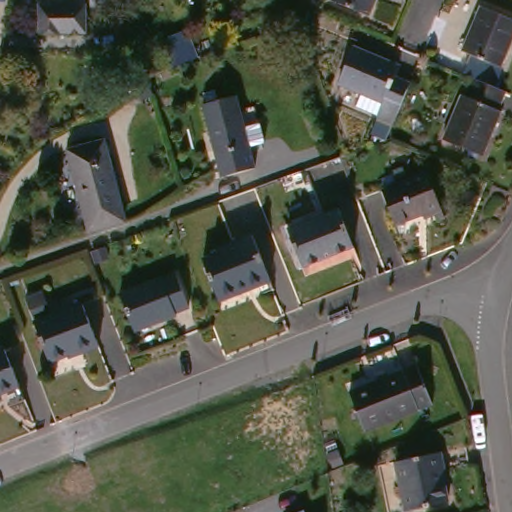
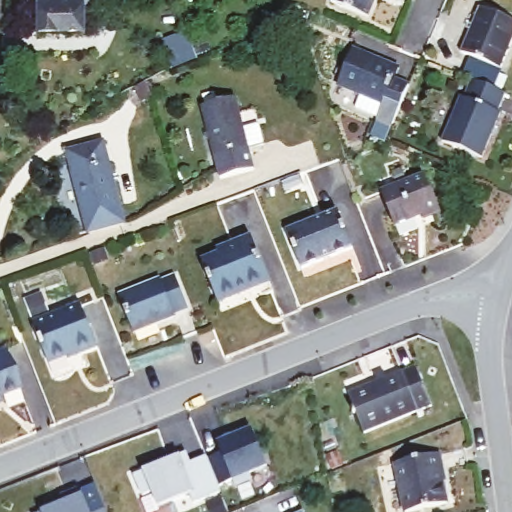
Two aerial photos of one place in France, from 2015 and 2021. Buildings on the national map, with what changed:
unchanged [(111,11),(83,11),(84,36),(39,37),(38,9),(41,9),(41,0),(111,0),(111,11)]
unchanged [(366,19),(329,3),(330,0),(374,0),(366,19)]
unchanged [(512,1),(511,0),(512,0),(512,1)]
unchanged [(458,54),(477,8),(512,23),(512,40),(499,70),(458,54)]
unchanged [(359,90),(335,80),(351,44),(397,64),(392,75),(407,81),(391,121),(374,114),(375,112),(353,103),(359,90)]
unchanged [(504,94),(496,112),(499,114),(480,159),(440,142),(458,97),(462,98),(470,80),(504,94)]
unchanged [(214,96),(202,99),(200,90),(212,87),(214,96)]
unchanged [(242,125),(257,121),(262,140),(247,144),(253,166),(219,175),(213,153),(199,102),(233,93),(242,125)]
unchanged [(87,232),(65,152),(100,143),(122,223),(87,232)]
unchanged [(430,189),(430,191),(442,221),(437,222),(434,216),(421,221),(420,217),(393,228),(379,191),(421,174),(428,190),(430,189)]
unchanged [(351,249),(299,269),(284,231),(336,210),(351,249)]
unchanged [(271,291),(219,311),(199,261),(215,255),(213,250),(250,236),(271,291)]
unchanged [(187,310),(173,315),(174,317),(132,334),(116,295),(159,278),(160,280),(174,275),(187,310)]
unchanged [(81,357),(52,368),(37,328),(28,306),(45,298),(55,322),(84,310),(101,352),(82,359),(81,357)]
unchanged [(17,392),(0,399),(0,355),(2,355),(17,392)]
unchanged [(367,433),(351,393),(380,382),(377,375),(386,371),(389,378),(418,367),(435,407),(367,433)]
new [(223,455),(219,445),(253,432),(268,469),(251,476),(253,481),(237,488),(234,482),(220,488),(208,460),(223,455)]
unchanged [(330,464),(327,442),(336,438),(343,459),(330,464)]
new [(212,512),(207,501),(194,506),(192,494),(159,508),(151,491),(141,498),(133,475),(186,452),(191,463),(206,457),(227,511),(226,512),(212,512)]
unchanged [(449,505),(410,512),(407,512),(397,462),(442,454),(445,472),(443,472),(449,505)]
new [(43,512),(64,502),(59,495),(78,486),(80,489),(95,484),(107,512),(43,512)]
demolished [(307,503),(311,512),(287,512),(307,503)]
unchanged [(349,507),(351,512),(340,512),(339,510),(349,507)]

